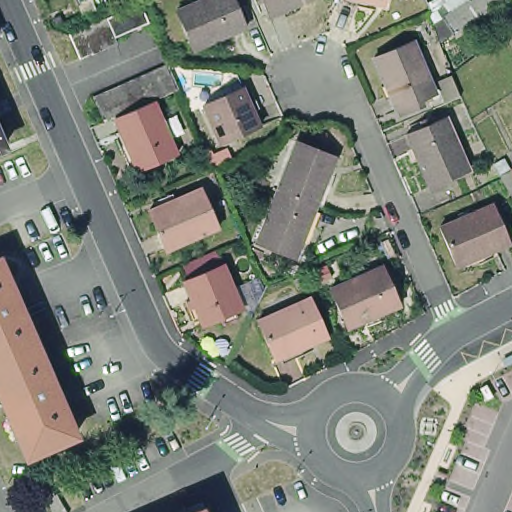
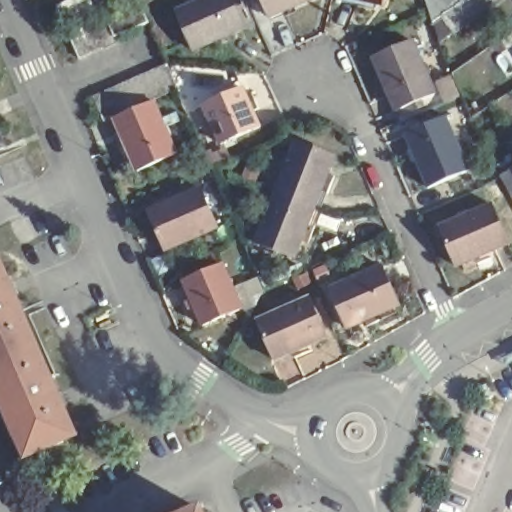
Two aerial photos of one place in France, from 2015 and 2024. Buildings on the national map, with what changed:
unchanged [(81,52),(71,19),(125,0),(135,0),(146,31),(81,52)]
unchanged [(193,48),(175,8),(196,0),(235,0),(236,3),(242,1),(245,6),(239,9),(246,26),(193,48)]
unchanged [(253,0),(307,0),(270,17),(263,0),(254,3),(253,0)]
unchanged [(359,0),(365,0),(365,2),(359,0)]
unchanged [(451,31),(450,28),(440,35),(435,17),(459,0),(492,0),(451,31)]
unchanged [(412,105),(410,100),(396,106),(375,54),(412,38),(435,89),(419,96),(421,101),(412,105)]
unchanged [(106,91),(120,85),(133,80),(145,75),(158,70),(170,65),(180,89),(167,95),(155,100),(142,105),(131,110),(117,116),(106,121),(95,95),(106,91)]
unchanged [(213,148),(198,109),(235,92),(243,108),(250,106),(252,110),(245,113),(253,130),(213,148)]
unchanged [(118,151),(124,148),(112,121),(153,105),(174,156),(135,174),(127,155),(120,159),(118,151)]
unchanged [(471,173),(434,191),(410,138),(426,132),(423,126),(431,122),(435,129),(450,122),(471,173)]
unchanged [(0,152),(0,127),(9,149),(0,152)]
unchanged [(322,206),(316,205),(315,208),(275,194),(292,143),(333,156),(324,182),(330,185),(322,206)]
unchanged [(257,246),(275,194),(315,208),(315,211),(321,213),(313,235),(307,233),(298,260),(257,246)]
unchanged [(215,236),(162,257),(145,218),(163,211),(161,205),(170,201),(172,207),(198,196),(215,236)]
unchanged [(475,263),(473,258),(456,265),(438,227),(490,203),(508,242),(480,255),(482,260),(475,263)]
unchanged [(63,409),(76,439),(29,461),(0,391),(0,263),(1,263),(13,291),(63,409)]
unchanged [(186,302),(193,300),(185,281),(222,265),(242,309),(203,326),(196,308),(189,310),(186,302)]
unchanged [(372,324),(370,317),(343,328),(327,289),(380,268),(397,307),(377,315),(380,321),(372,324)]
unchanged [(290,359),(288,352),(271,359),(254,320),(306,300),(323,338),(295,349),(298,355),(290,359)]
unchanged [(64,512),(52,512),(45,499),(54,494),(64,512)]

